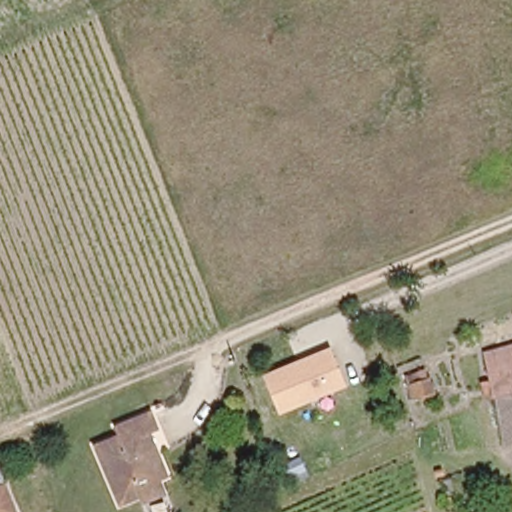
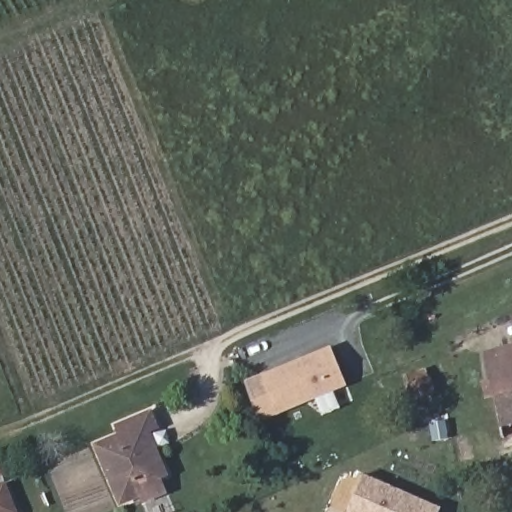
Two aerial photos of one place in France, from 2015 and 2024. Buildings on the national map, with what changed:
unchanged [(280,414),(264,374),(331,347),(347,386),(280,414)]
unchanged [(487,355),(512,347),(512,442),(504,443),(501,425),(495,396),(487,355)]
unchanged [(143,507),(141,500),(120,508),(97,451),(122,441),(118,431),(154,417),(161,434),(146,440),(154,459),(157,458),(170,488),(161,491),(164,499),(143,507)]
unchanged [(3,478),(0,479),(0,469),(3,478)]
new [(350,512),(363,474),(441,508),(439,512),(350,512)]
unchanged [(6,484),(17,512),(0,512),(0,486),(6,484)]

